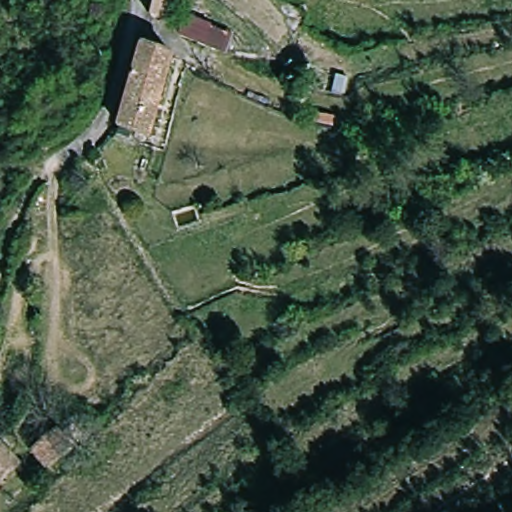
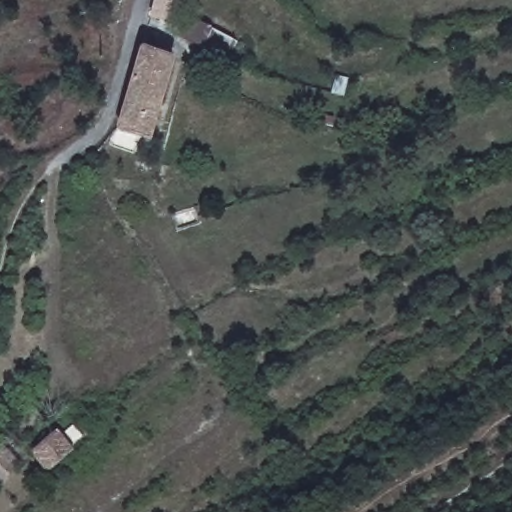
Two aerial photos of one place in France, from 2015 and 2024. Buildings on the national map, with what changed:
unchanged [(176,21),(151,18),(155,0),(178,0),(176,21)]
unchanged [(187,17),(205,21),(201,40),(197,39),(182,35),(187,17)]
unchanged [(140,46),(172,56),(153,137),(118,129),(140,46)]
unchanged [(32,454),(56,429),(73,445),(50,470),(32,454)]
unchanged [(0,480),(0,444),(13,454),(18,460),(0,480)]

